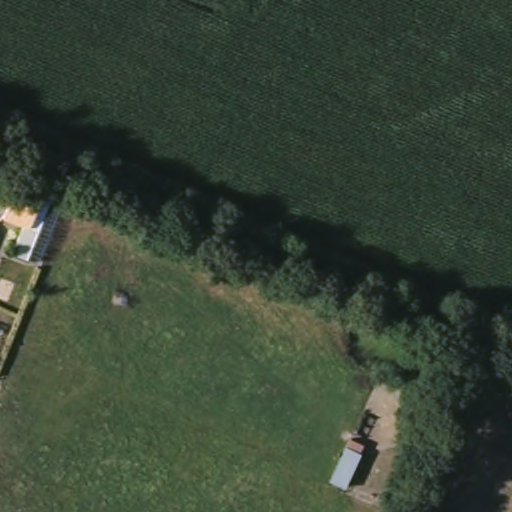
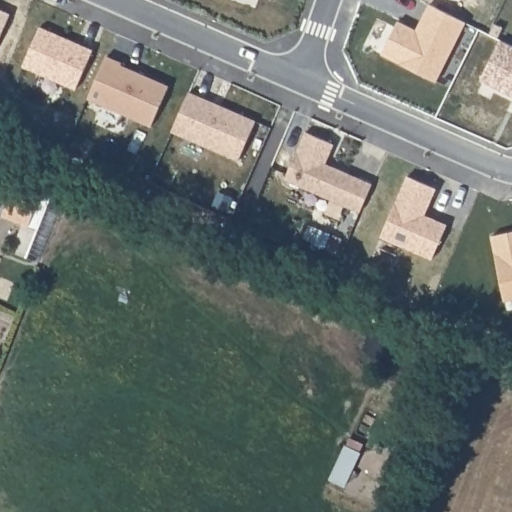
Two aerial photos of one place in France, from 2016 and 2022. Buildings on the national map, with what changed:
new [(76,90),(23,66),(40,25),(91,50),(76,90)]
new [(106,57),(121,63),(120,66),(169,87),(151,127),(87,99),(106,57)]
new [(239,160),(172,131),(190,89),(255,119),(239,160)]
new [(360,211),(285,180),(305,131),(333,143),(326,163),(371,182),(360,211)]
unchanged [(58,187),(30,257),(17,252),(29,224),(8,216),(25,174),(58,187)]
new [(405,176),(435,190),(426,216),(446,224),(431,260),(382,236),(405,176)]

